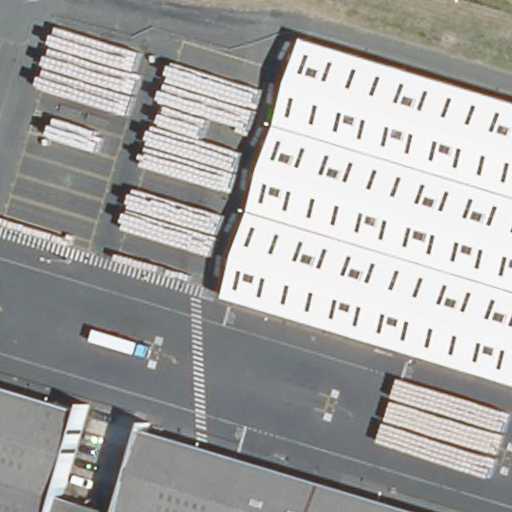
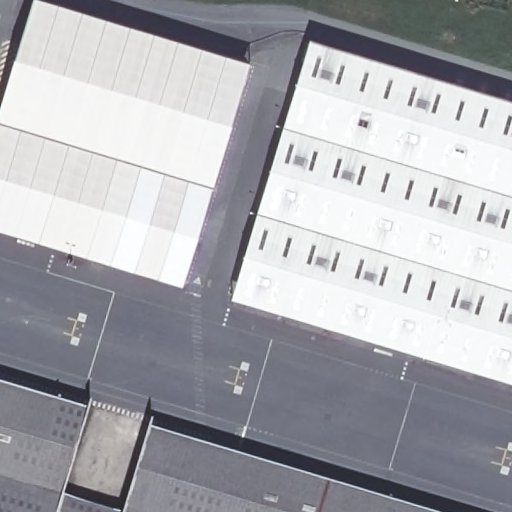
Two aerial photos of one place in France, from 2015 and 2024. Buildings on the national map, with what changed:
new [(255,60),(187,283),(0,230),(0,107),(35,0),(51,0),(255,60)]
unchanged [(308,34),(512,95),(512,383),(228,294),(308,34)]
unchanged [(84,409),(58,495),(53,512),(0,512),(0,384),(84,409)]
unchanged [(419,512),(122,512),(150,432),(419,512)]
unchanged [(116,512),(53,512),(58,495),(116,512)]

